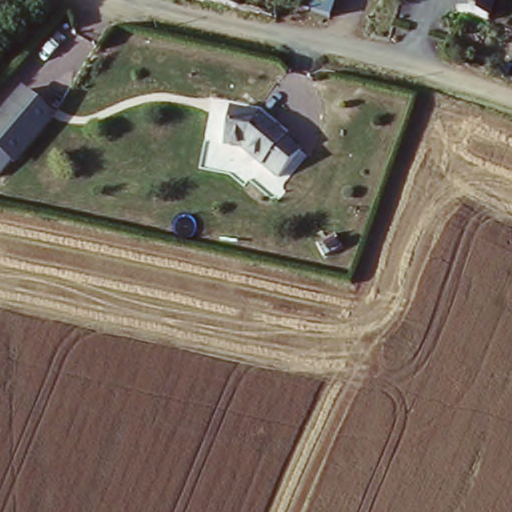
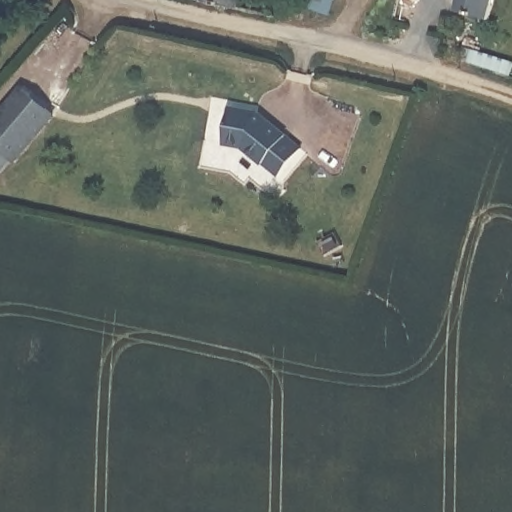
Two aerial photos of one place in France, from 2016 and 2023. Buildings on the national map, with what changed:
unchanged [(202,0),(244,0),(242,10),(202,0)]
unchanged [(300,3),(301,0),(334,0),(329,15),(300,3)]
unchanged [(458,13),(462,0),(495,0),(489,21),(458,13)]
unchanged [(49,116),(9,162),(0,154),(0,111),(20,89),(49,116)]
unchanged [(228,106),(260,111),(301,147),(275,177),(246,152),(220,148),(228,106)]

